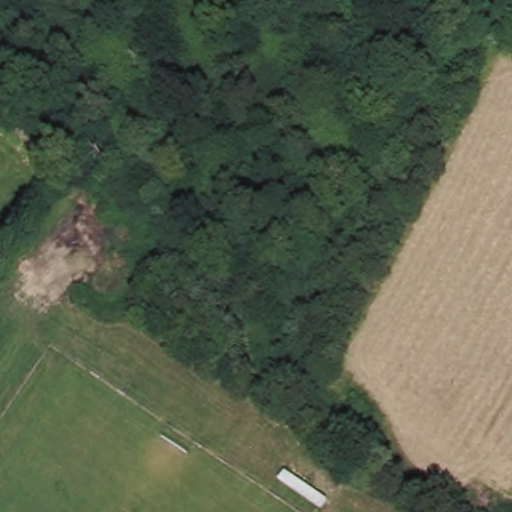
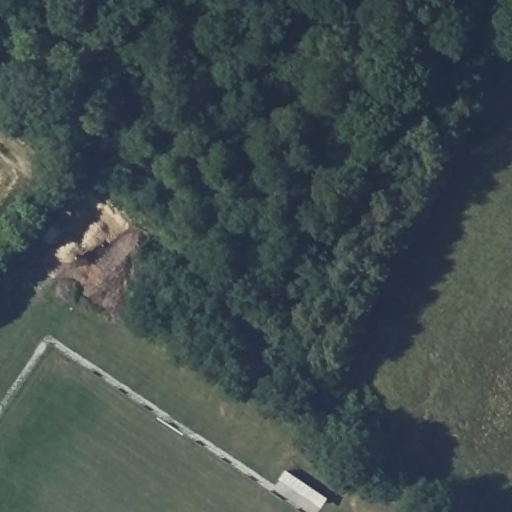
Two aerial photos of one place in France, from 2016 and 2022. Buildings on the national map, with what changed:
unchanged [(292,468),(332,494),(323,508),(283,481),(292,468)]

